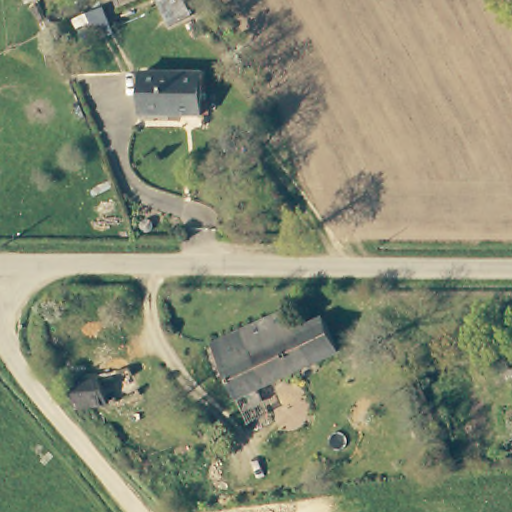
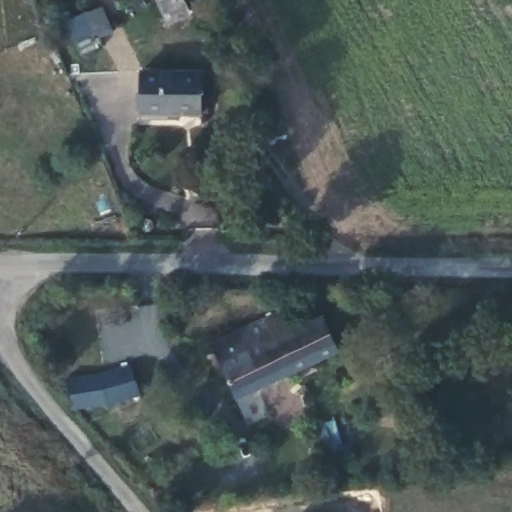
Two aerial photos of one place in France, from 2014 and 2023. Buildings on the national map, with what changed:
unchanged [(169,25),(156,0),(185,0),(192,14),(169,25)]
unchanged [(199,72),(200,114),(141,112),(141,70),(199,72)]
unchanged [(292,330),(317,320),(335,353),(232,400),(205,345),(282,312),(292,330)]
new [(140,396),(75,409),(67,393),(69,376),(100,374),(130,365),(140,396)]
demolished [(102,372),(107,397),(94,400),(96,408),(72,409),(60,377),(102,372)]

